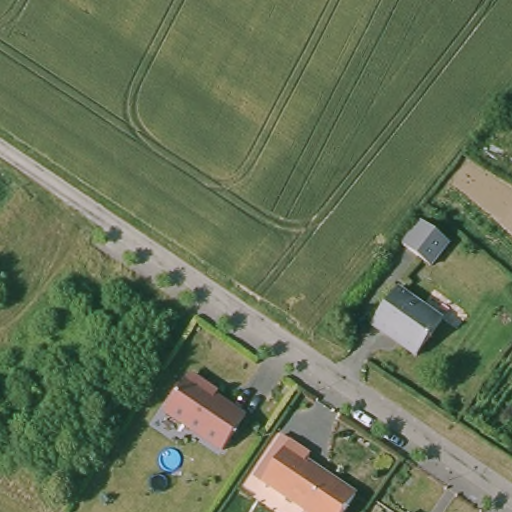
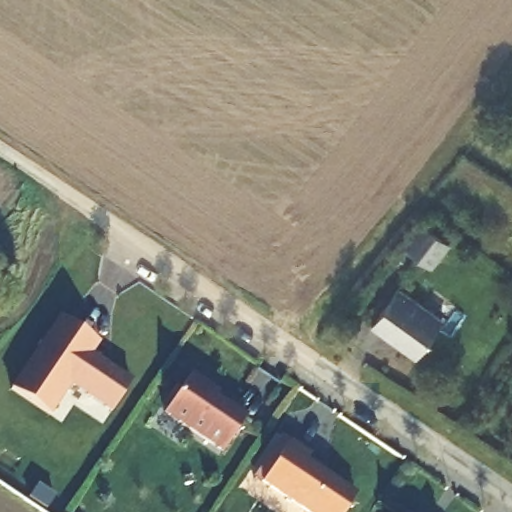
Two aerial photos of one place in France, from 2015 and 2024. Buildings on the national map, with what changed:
unchanged [(432,265),(406,245),(403,242),(421,219),(424,221),(451,241),(432,265)]
unchanged [(415,357),(389,339),(387,341),(369,328),(395,291),(440,323),(415,357)]
new [(60,315),(100,342),(93,353),(133,380),(111,414),(70,386),(51,415),(10,388),(60,315)]
unchanged [(193,375),(205,383),(206,388),(245,415),(221,450),(163,410),(187,376),(193,375)]
unchanged [(301,460),(351,493),(338,512),(305,512),(257,479),(284,440),(305,453),(301,460)]
unchanged [(394,512),(397,508),(402,512),(394,512)]

